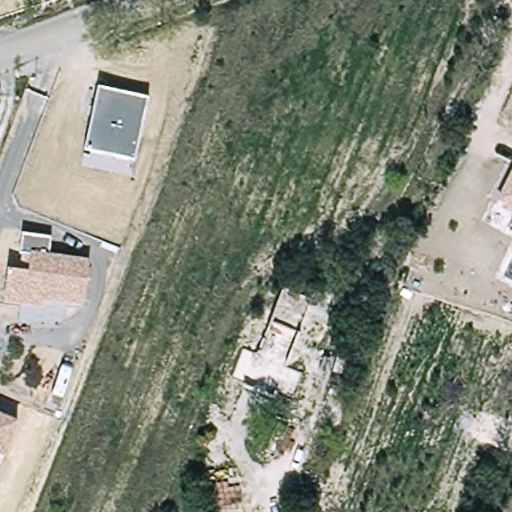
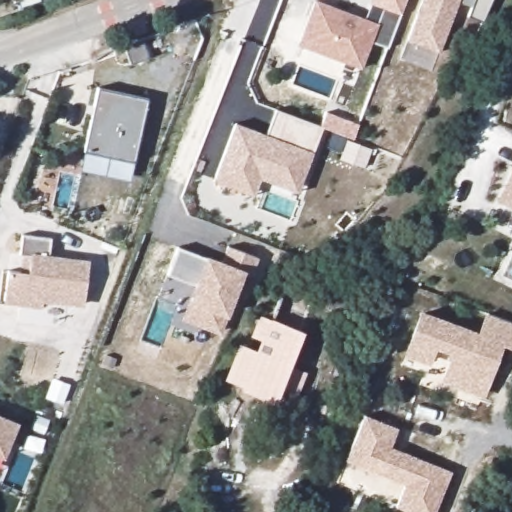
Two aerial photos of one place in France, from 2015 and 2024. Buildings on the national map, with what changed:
new [(362,69),(298,45),(315,0),(377,23),(383,7),(401,14),(388,48),(373,43),(362,69)]
new [(371,0),(407,0),(401,14),(383,7),(377,23),(363,18),(371,0)]
new [(484,21),(469,15),(472,7),(459,1),(440,53),(407,41),(422,0),(493,0),(484,21)]
unchanged [(99,89),(148,99),(136,161),(86,151),(99,89)]
new [(277,109),(323,126),(314,152),(298,193),(262,179),(255,196),(213,180),(235,122),(267,134),(277,109)]
unchanged [(512,175),(512,206),(500,200),(512,175)]
unchanged [(89,262),(83,307),(43,302),(42,311),(5,306),(7,273),(28,275),(31,255),(21,254),(24,237),(51,239),(50,257),(89,262)]
new [(228,317),(221,335),(181,319),(187,302),(194,285),(166,274),(177,244),(206,255),(222,261),(227,246),(260,258),(254,271),(246,270),(228,317)]
demolished [(313,295),(273,401),(245,392),(287,285),(313,295)]
new [(256,350),(260,339),(250,335),(259,314),(304,332),(290,365),(307,373),(294,403),(276,398),(274,404),(240,390),(241,386),(225,379),(239,344),(256,350)]
new [(481,336),(489,314),(512,323),(512,349),(501,344),(483,394),(444,379),(455,351),(435,344),(429,360),(407,352),(421,314),(481,336)]
new [(408,486),(346,462),(364,413),(399,428),(391,449),(451,472),(435,512),(420,512),(401,504),(408,486)]
unchanged [(18,422),(3,458),(0,457),(0,415),(18,422)]

